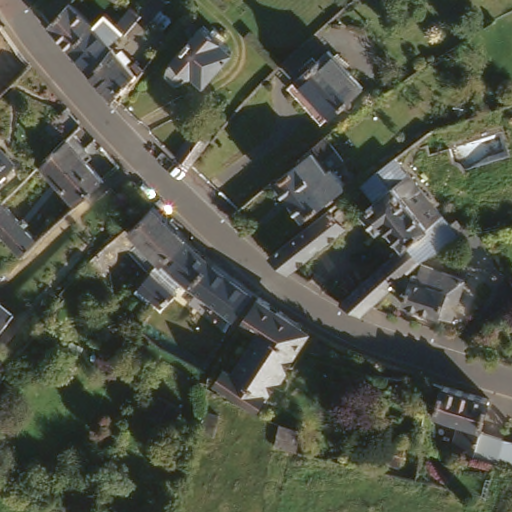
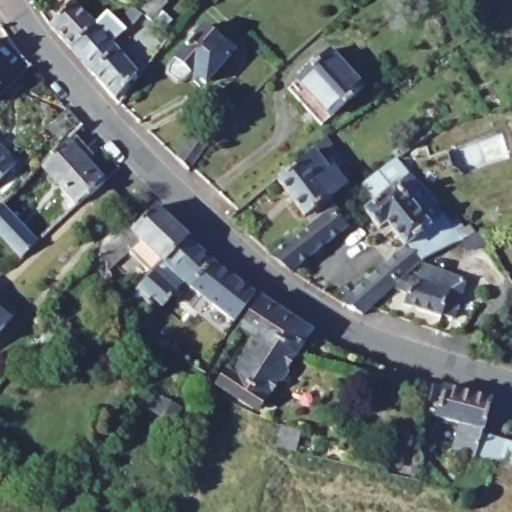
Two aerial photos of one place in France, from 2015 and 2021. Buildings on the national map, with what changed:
unchanged [(104,31),(87,48),(81,54),(64,35),(59,30),(61,29),(79,8),(104,31)]
unchanged [(170,14),(181,20),(173,34),(161,26),(170,14)]
unchanged [(124,101),(102,77),(81,54),(87,48),(104,31),(116,22),(119,25),(121,26),(130,19),(144,35),(135,42),(133,40),(120,54),(122,56),(146,80),(124,101)]
unchanged [(170,63),(205,24),(232,46),(206,77),(193,67),(189,72),(187,74),(178,77),(168,71),(170,63)]
unchanged [(174,40),(169,46),(148,30),(152,25),(174,40)]
unchanged [(377,84),(332,121),(298,85),(343,46),(377,84)]
unchanged [(50,132),(72,110),(85,124),(77,132),(90,144),(82,154),(111,180),(110,181),(83,207),(43,168),(63,145),(50,132)]
unchanged [(198,125),(212,135),(206,144),(192,162),(189,166),(176,155),(198,125)]
unchanged [(327,204),(329,207),(318,215),(316,212),(307,218),(279,182),(299,167),(296,164),(315,148),(329,137),(348,161),(335,172),(348,189),(327,204)]
unchanged [(0,186),(0,140),(24,164),(0,186)]
unchanged [(394,154),(400,161),(414,180),(448,222),(454,217),(456,219),(463,227),(465,225),(471,232),(468,235),(462,236),(436,250),(421,257),(417,260),(410,266),(383,286),(357,307),(333,298),(403,245),(384,220),(378,225),(364,206),(384,192),(369,172),(394,154)]
unchanged [(114,189),(126,201),(104,220),(93,207),(114,189)]
unchanged [(343,200),(354,216),(344,224),(347,229),(292,272),(269,255),(343,200)]
unchanged [(45,240),(31,253),(0,225),(0,208),(7,201),(45,240)]
unchanged [(141,235),(164,210),(197,240),(174,265),(141,235)]
unchanged [(302,348),(309,352),(271,409),(266,408),(228,386),(236,375),(242,378),(268,340),(261,335),(265,329),(255,322),(257,320),(207,281),(201,288),(174,265),(197,240),(224,263),(274,298),(296,313),(317,326),(302,348)]
unchanged [(413,277),(416,270),(421,271),(424,263),(447,271),(467,278),(454,314),(441,311),(405,300),(413,277)]
unchanged [(167,286),(154,300),(132,282),(145,268),(167,286)]
unchanged [(0,333),(0,307),(13,317),(0,333)]
unchanged [(152,310),(165,325),(154,335),(157,340),(154,342),(137,325),(152,310)]
unchanged [(120,334),(129,323),(142,336),(133,347),(120,334)]
unchanged [(493,460),(478,455),(483,441),(475,438),(479,423),(454,416),(446,442),(438,440),(454,382),(511,401),(501,433),(512,436),(512,466),(493,460)]

